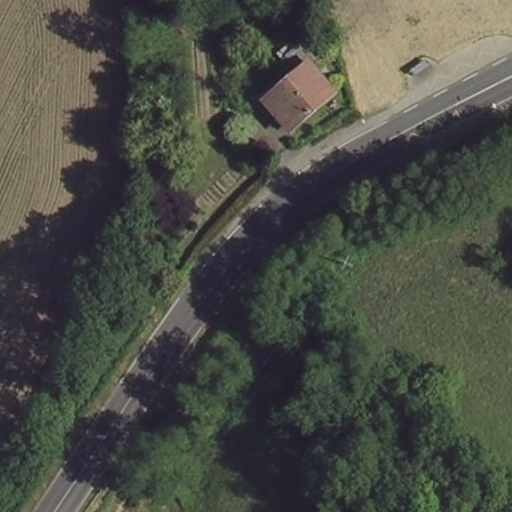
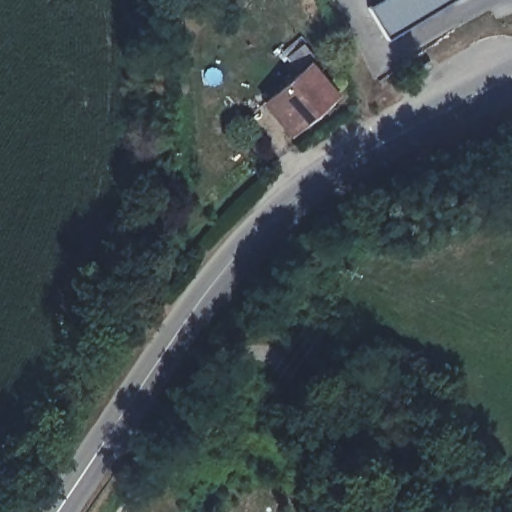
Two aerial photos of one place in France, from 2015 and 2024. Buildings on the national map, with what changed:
new [(379,0),(451,0),(386,40),(367,7),(379,0)]
unchanged [(264,106),(295,77),(280,61),(295,47),(310,63),(305,71),(330,100),(293,138),(264,106)]

